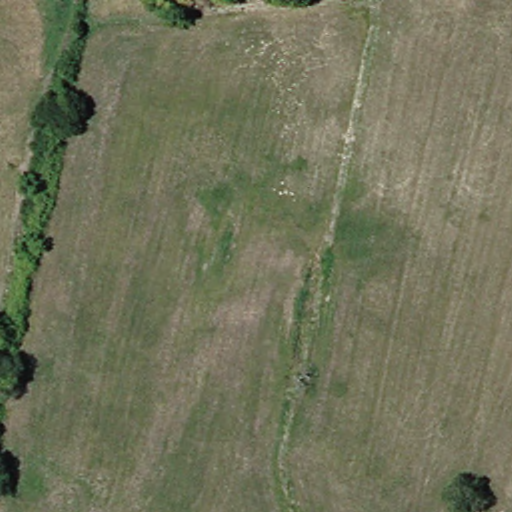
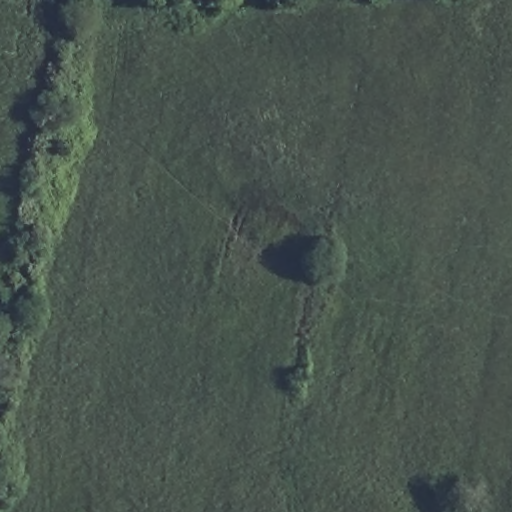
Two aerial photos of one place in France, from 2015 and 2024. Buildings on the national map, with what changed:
[]

